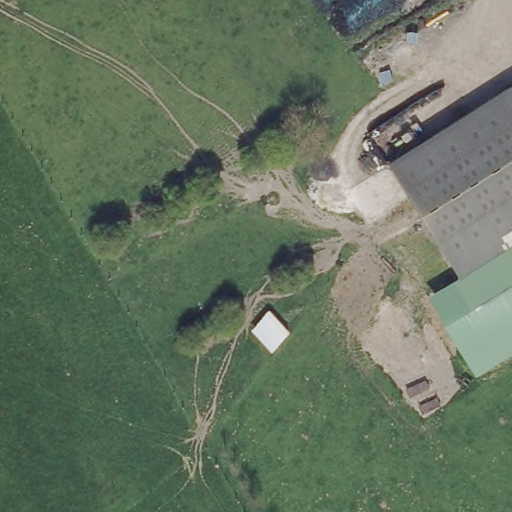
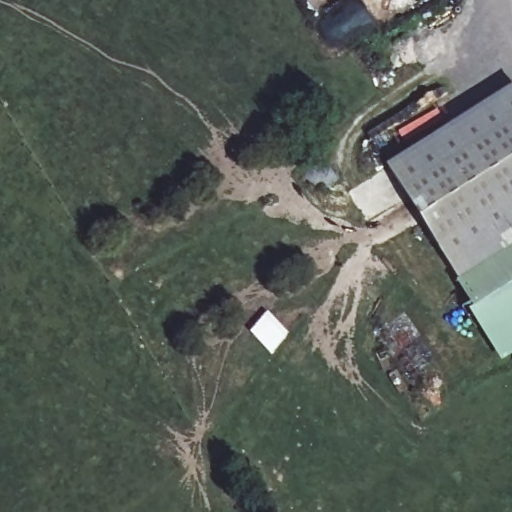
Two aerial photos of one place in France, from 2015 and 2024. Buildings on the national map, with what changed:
unchanged [(512,93),(512,251),(459,282),(391,169),(512,93)]
unchanged [(512,251),(512,354),(475,377),(427,300),(459,282),(512,251)]

